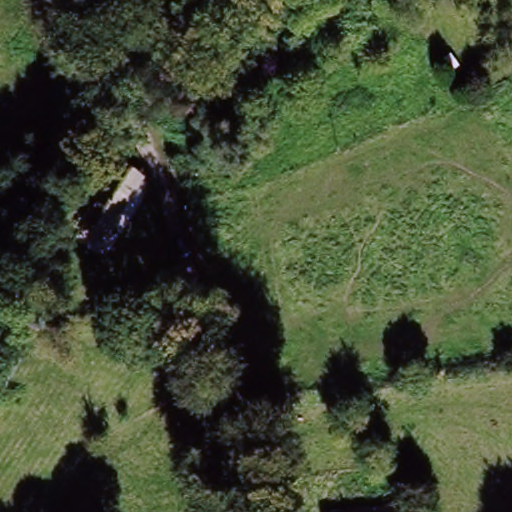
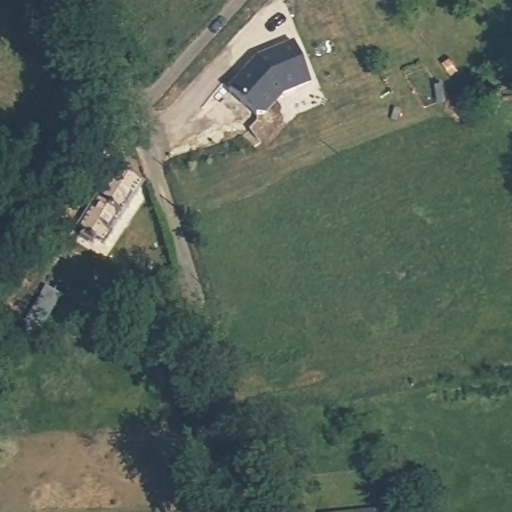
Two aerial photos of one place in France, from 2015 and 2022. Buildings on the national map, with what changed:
unchanged [(72,12),(83,55),(56,61),(45,19),(72,12)]
new [(282,95),(263,115),(256,116),(228,90),(257,59),(259,60),(268,56),(267,55),(294,44),(310,84),(282,95)]
unchanged [(100,249),(82,235),(105,201),(120,176),(137,189),(100,249)]
unchanged [(383,498),(385,510),(420,506),(421,512),(332,512),(332,502),(383,498)]

